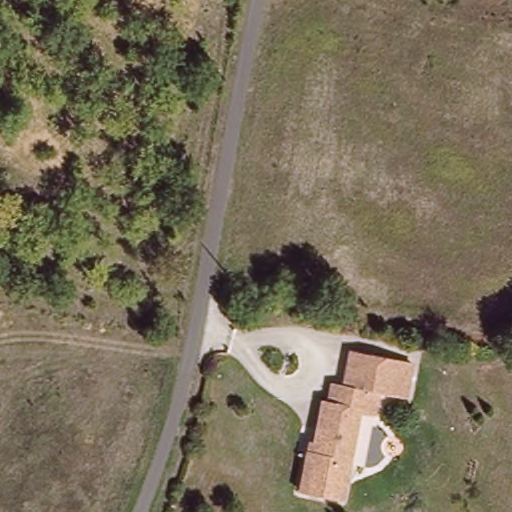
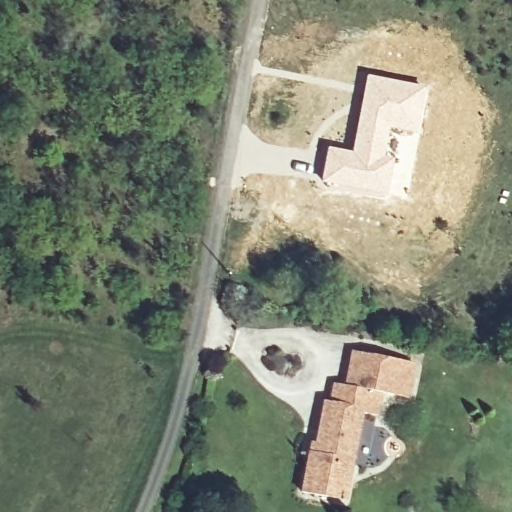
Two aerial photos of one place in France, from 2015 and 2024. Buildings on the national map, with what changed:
new [(326,146),(350,151),(366,74),(428,87),(408,199),(367,196),(319,182),(326,146)]
unchanged [(417,360),(409,396),(394,393),(385,391),(381,413),(365,411),(348,499),(303,491),(310,450),(316,451),(326,398),(336,400),(341,382),(347,382),(351,363),(355,347),(381,355),(407,359),(417,360)]

